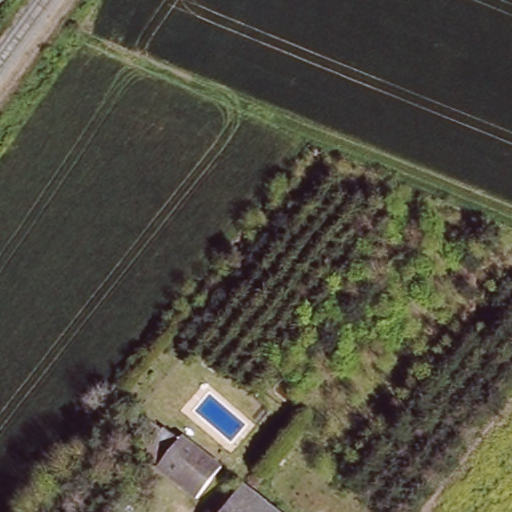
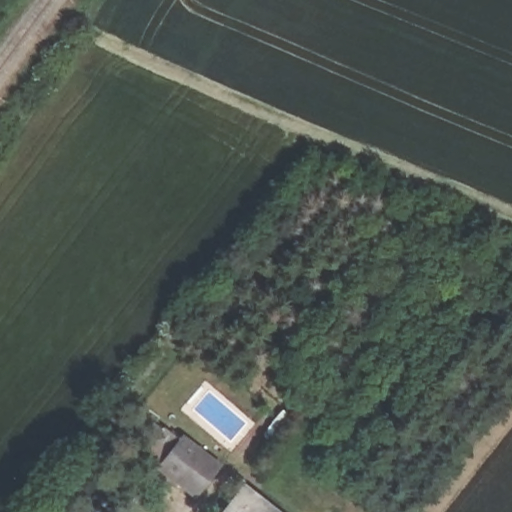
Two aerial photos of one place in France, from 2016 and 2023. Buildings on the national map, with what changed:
unchanged [(223,462),(198,495),(160,465),(185,432),(223,462)]
unchanged [(257,488),(288,512),(225,512),(249,482),(257,488)]

